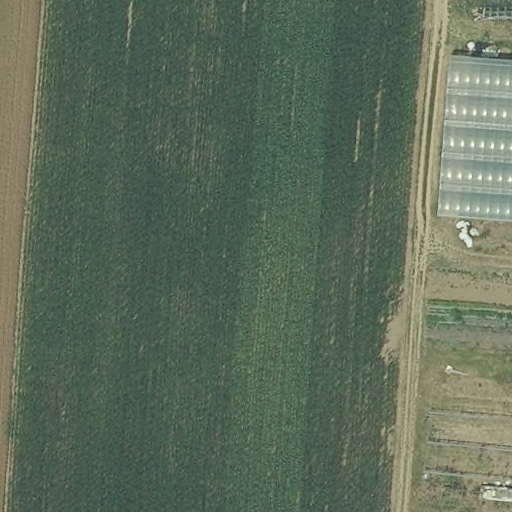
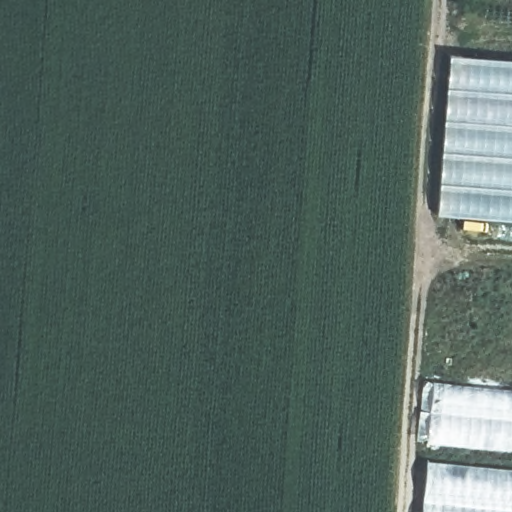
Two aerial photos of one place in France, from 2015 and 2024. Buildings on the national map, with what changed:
unchanged [(451,55),(512,59),(512,222),(441,217),(451,55)]
new [(512,390),(512,512),(421,512),(432,383),(512,390)]

